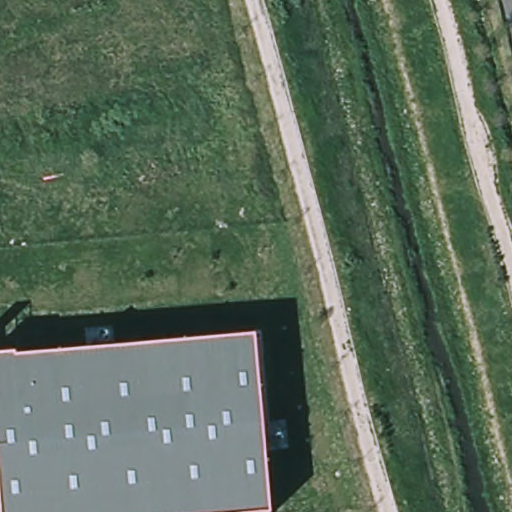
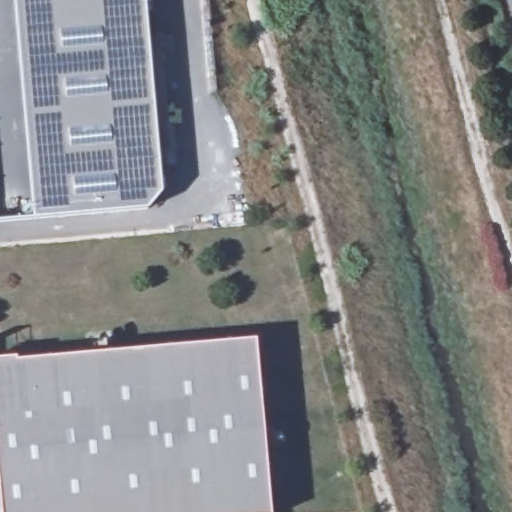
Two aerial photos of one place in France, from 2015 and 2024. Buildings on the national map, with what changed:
new [(160,193),(146,210),(31,220),(14,0),(144,0),(160,193)]
unchanged [(14,363),(254,342),(269,512),(0,512),(0,507),(0,360),(13,359),(14,363)]

